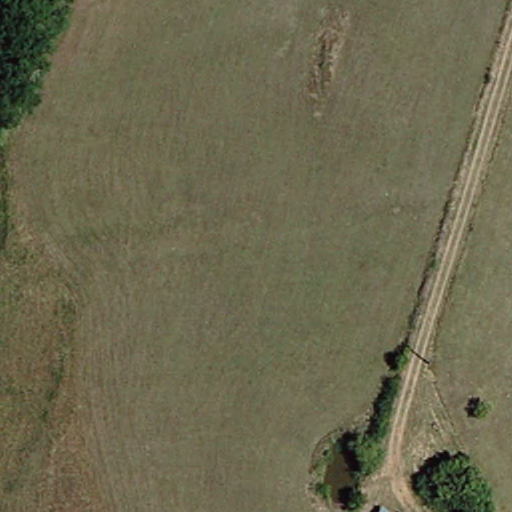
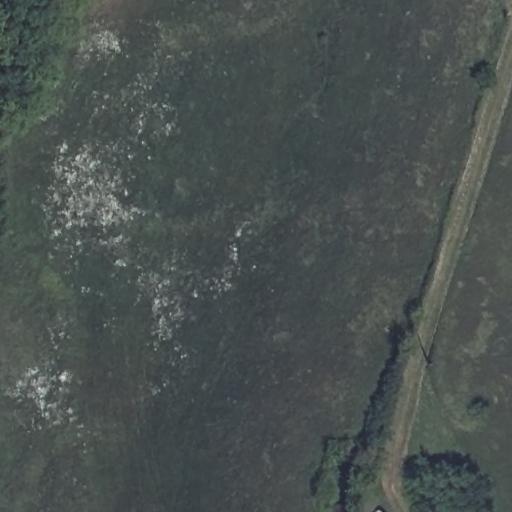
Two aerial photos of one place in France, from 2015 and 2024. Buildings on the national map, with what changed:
unchanged [(382,510),(384,512),(382,512),(382,510)]

